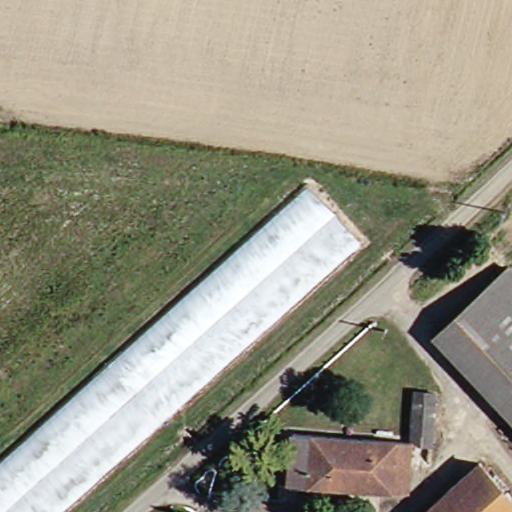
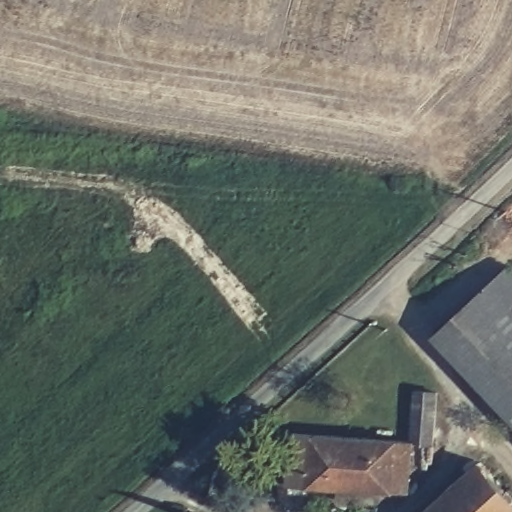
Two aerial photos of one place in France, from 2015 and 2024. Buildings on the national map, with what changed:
demolished [(60,512),(0,512),(0,456),(299,188),(359,245),(60,512)]
unchanged [(512,282),(512,426),(427,337),(498,268),(512,282)]
unchanged [(273,438),(285,438),(406,446),(408,394),(430,397),(427,471),(405,469),(403,494),(284,486),(271,487),(273,438)]
unchanged [(478,461),(512,497),(512,512),(423,512),(478,461)]

